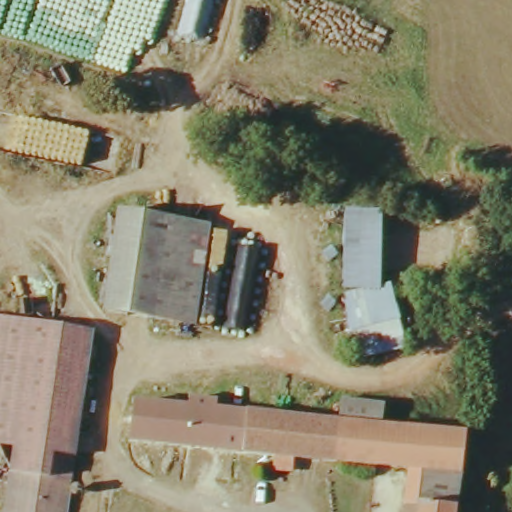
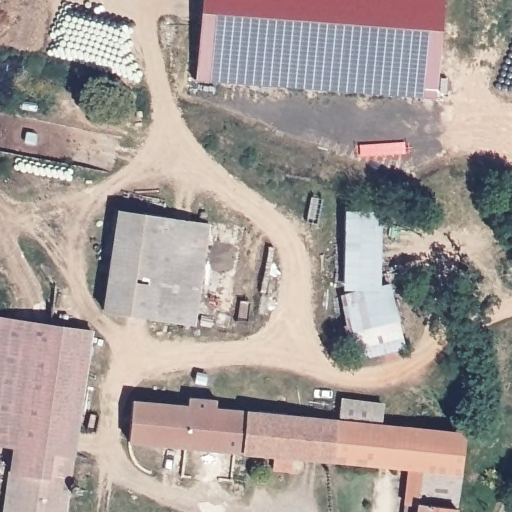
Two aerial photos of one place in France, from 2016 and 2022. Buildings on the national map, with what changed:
new [(203,0),(444,0),(437,97),(197,79),(203,0)]
unchanged [(376,212),(374,284),(341,283),(344,211),(376,212)]
unchanged [(119,212),(208,224),(196,324),(106,312),(119,212)]
unchanged [(390,286),(396,319),(351,332),(344,300),(390,286)]
unchanged [(97,333),(64,512),(6,512),(18,448),(0,445),(0,316),(40,323),(97,333)]
unchanged [(236,452),(128,441),(131,400),(186,405),(187,397),(214,399),(213,408),(238,410),(236,452)]
unchanged [(404,507),(408,469),(333,461),(334,420),(338,420),(339,397),(379,400),(378,425),(465,434),(455,512),(401,512),(401,507),(404,507)]
unchanged [(333,461),(294,458),(293,472),(275,471),(276,456),(236,452),(238,410),(334,420),(333,461)]

